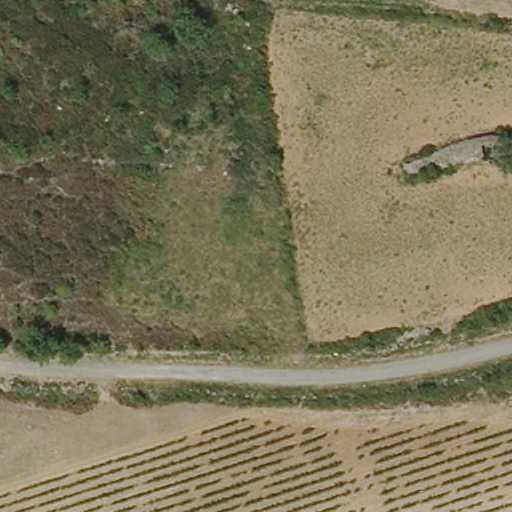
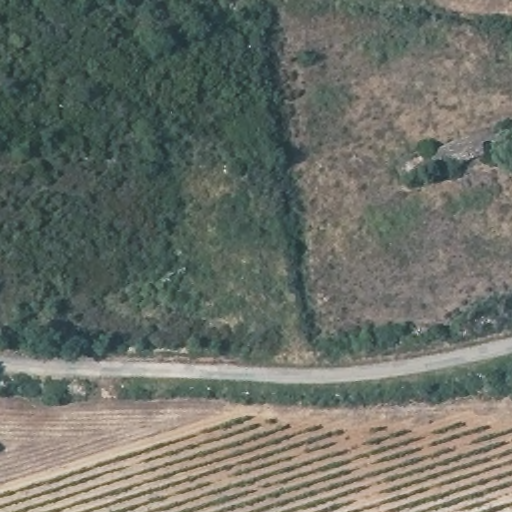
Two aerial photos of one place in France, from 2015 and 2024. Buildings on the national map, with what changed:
unchanged [(486,155),(409,175),(404,160),(430,156),(438,149),(482,134),(486,155)]

